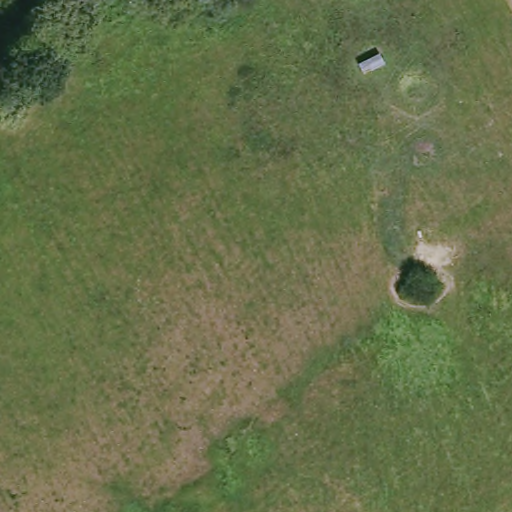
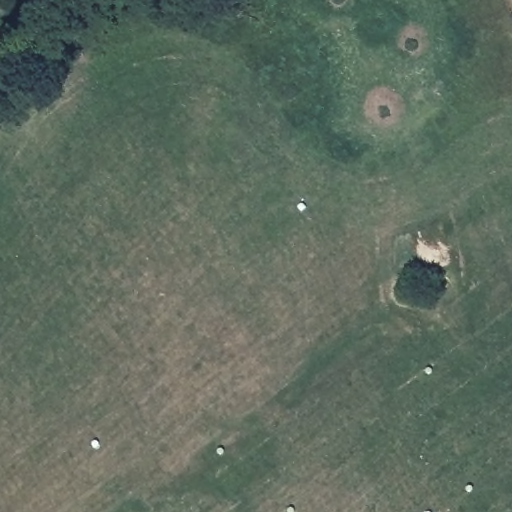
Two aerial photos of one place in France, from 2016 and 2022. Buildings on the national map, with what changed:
[]

